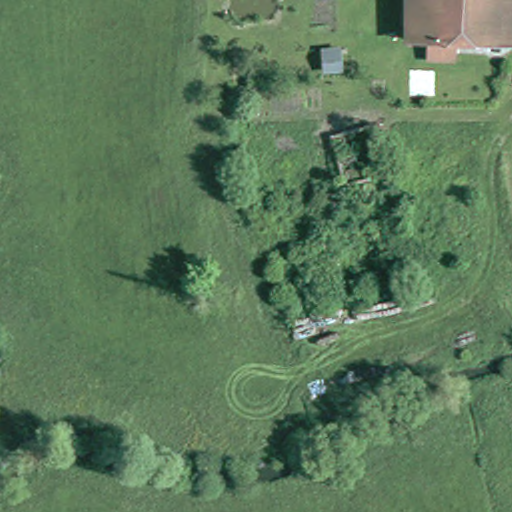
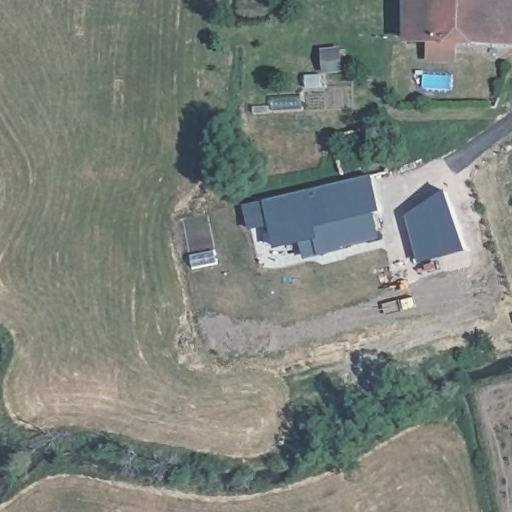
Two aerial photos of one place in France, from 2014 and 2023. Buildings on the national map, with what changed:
unchanged [(428,37),(408,37),(406,0),(512,0),(512,37),(454,37),(454,55),(428,55),(428,37)]
new [(297,245),(274,250),(264,201),(341,182),(344,182),(372,175),(383,212),(374,214),(379,239),(342,248),(342,251),(320,256),(304,259),(297,245)]
new [(448,191),(469,251),(419,264),(407,216),(448,191)]

